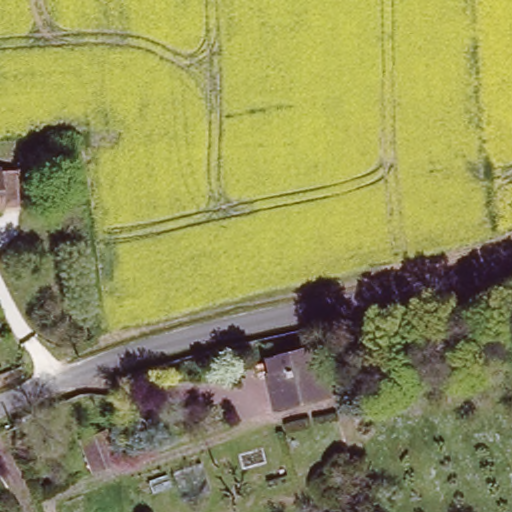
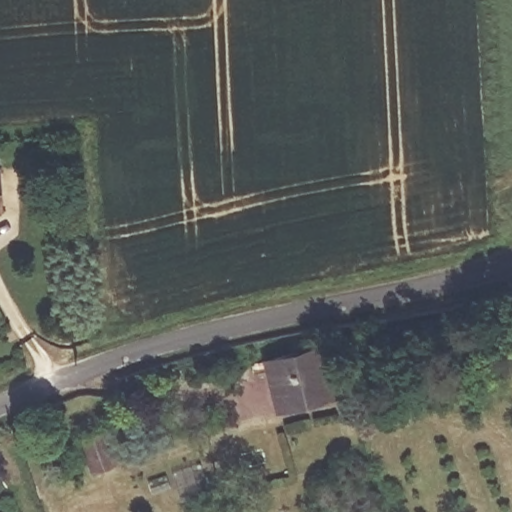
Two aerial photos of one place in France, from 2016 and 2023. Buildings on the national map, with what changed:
unchanged [(22,204),(13,205),(13,212),(0,213),(0,162),(8,161),(8,170),(19,169),(22,204)]
unchanged [(334,341),(346,393),(279,409),(264,356),(334,341)]

